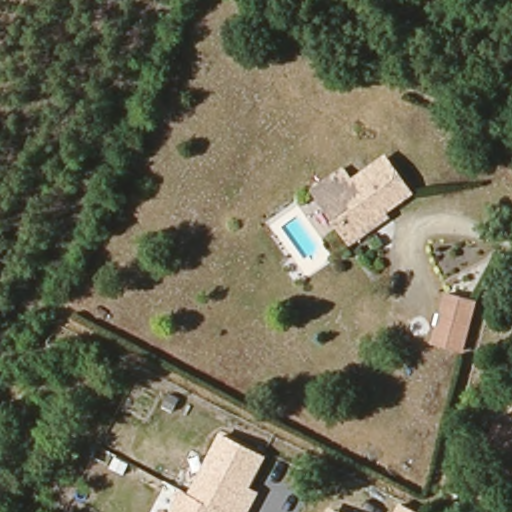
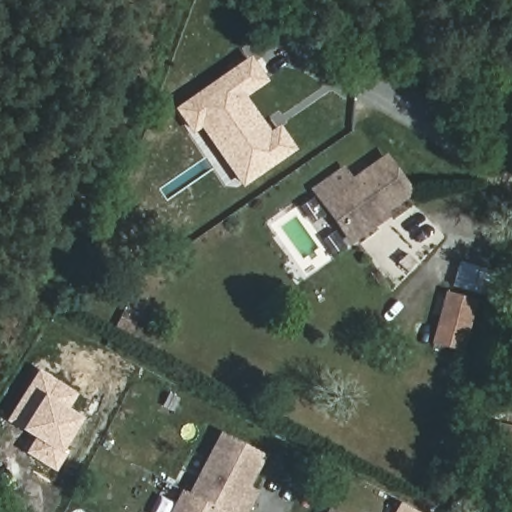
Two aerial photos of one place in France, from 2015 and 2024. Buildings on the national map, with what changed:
new [(270,131),(281,126),(297,150),(242,187),(203,124),(190,132),(174,109),(253,55),(268,82),(247,97),(270,131)]
unchanged [(325,205),(316,190),(343,173),(351,186),(388,163),(408,195),(386,209),(390,215),(355,236),(348,241),(325,205)]
unchanged [(460,346),(440,341),(453,293),(472,298),(460,346)]
new [(9,416),(38,368),(74,391),(64,407),(82,418),(62,450),(67,452),(55,471),(30,455),(40,440),(21,430),(24,425),(9,416)]
unchanged [(492,432),(512,437),(512,469),(486,463),(492,432)]
unchanged [(260,491),(249,512),(170,512),(181,490),(189,493),(220,433),(266,455),(250,486),(260,491)]
unchanged [(414,512),(397,512),(401,505),(414,512)]
unchanged [(343,512),(335,512),(336,508),(343,512)]

